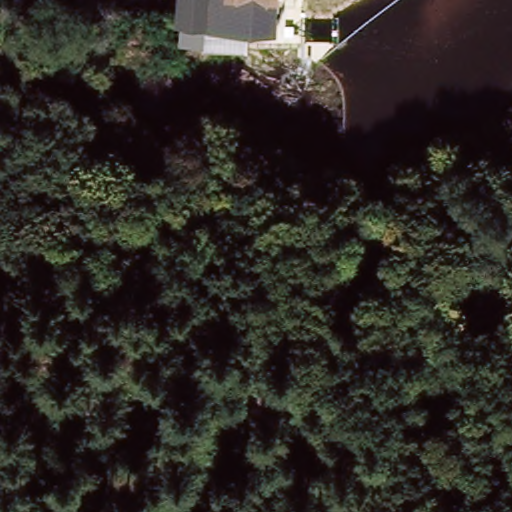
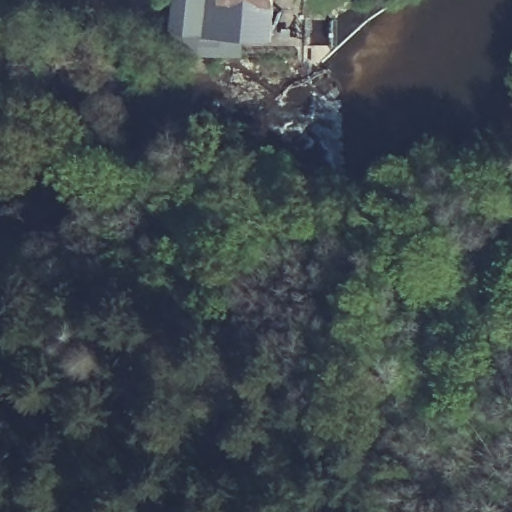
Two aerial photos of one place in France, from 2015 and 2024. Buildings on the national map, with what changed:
unchanged [(273,5),(273,23),(246,25),(244,42),(180,38),(181,30),(176,27),(179,0),(296,0),(296,5),(273,5)]

